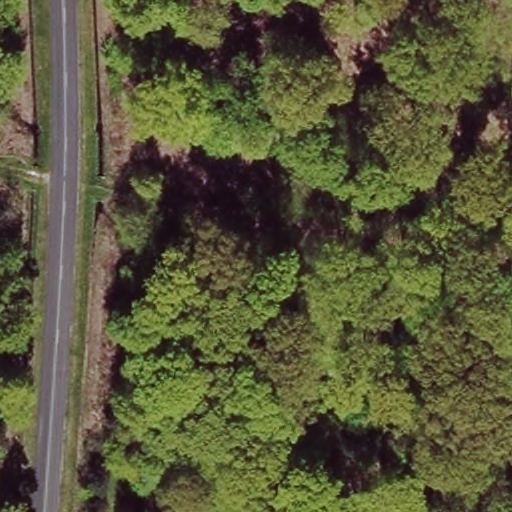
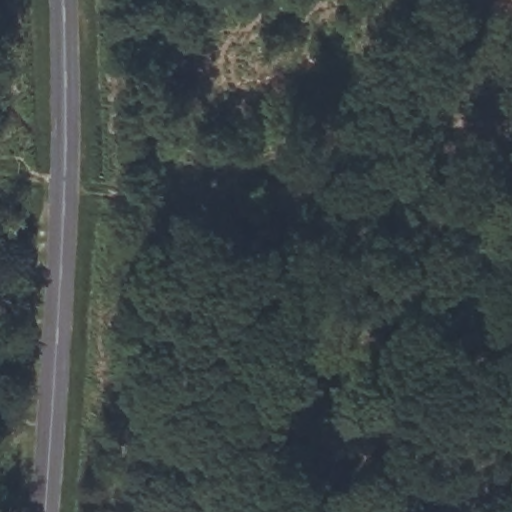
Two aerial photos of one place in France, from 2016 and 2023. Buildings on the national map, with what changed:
[]

